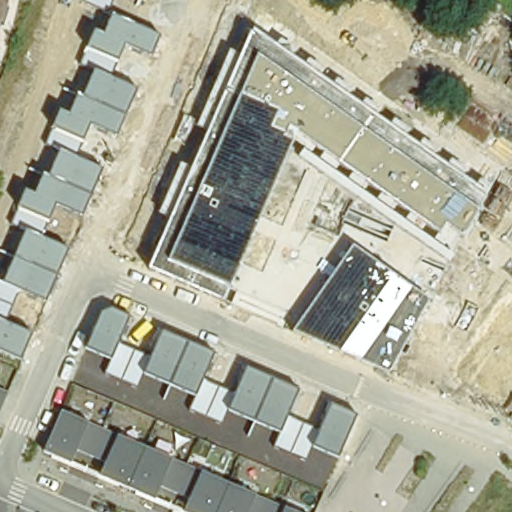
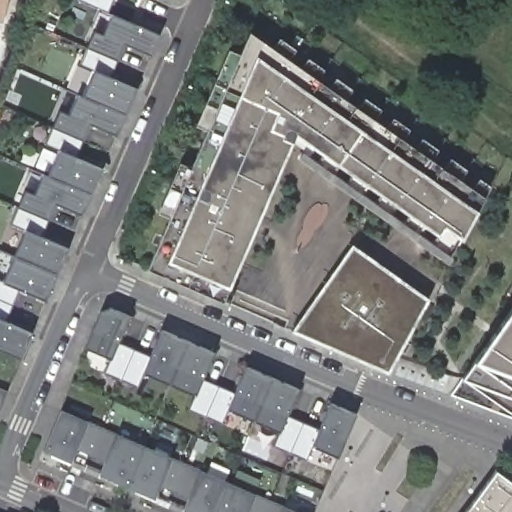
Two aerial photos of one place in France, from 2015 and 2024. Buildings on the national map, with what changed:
unchanged [(0,22),(0,0),(10,0),(4,23),(0,22)]
unchanged [(79,0),(111,0),(106,12),(79,0)]
unchanged [(152,56),(126,46),(112,78),(138,88),(118,136),(93,126),(77,157),(103,167),(83,217),(57,206),(43,238),(70,249),(46,303),(22,292),(6,322),(34,333),(22,359),(0,349),(0,280),(4,281),(25,231),(11,226),(27,191),(35,195),(43,174),(49,176),(59,150),(45,144),(60,111),(69,114),(76,94),(84,96),(93,71),(80,65),(96,29),(104,32),(112,14),(161,35),(152,56)]
unchanged [(477,212),(447,263),(289,150),(230,288),(224,303),(147,271),(252,27),(488,194),(477,212)]
unchanged [(389,372),(290,331),(353,243),(430,299),(389,372)]
unchanged [(100,316),(112,308),(130,316),(119,343),(150,356),(161,331),(214,353),(203,380),(236,394),(248,368),(300,390),(289,416),(321,430),(331,405),(356,416),(339,456),(314,445),(309,458),(276,446),(283,432),(230,412),(226,422),(191,408),(198,395),(147,373),(141,386),(106,373),(112,360),(87,347),(100,316)]
new [(465,377),(476,360),(512,308),(512,417),(454,395),(465,377)]
unchanged [(9,393),(0,417),(0,389),(9,393)]
unchanged [(307,512),(184,512),(46,451),(64,407),(307,512)]
new [(499,470),(512,480),(512,512),(467,512),(499,470)]

